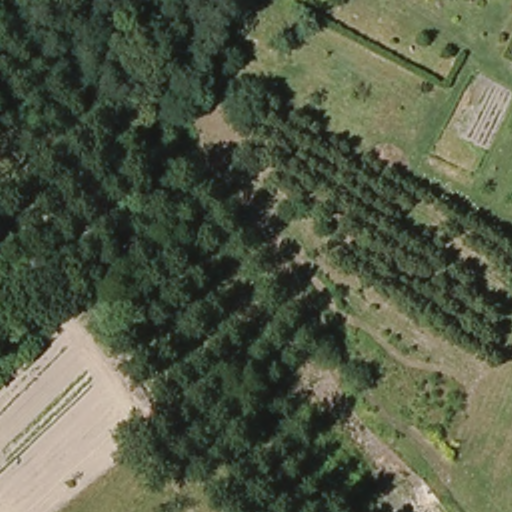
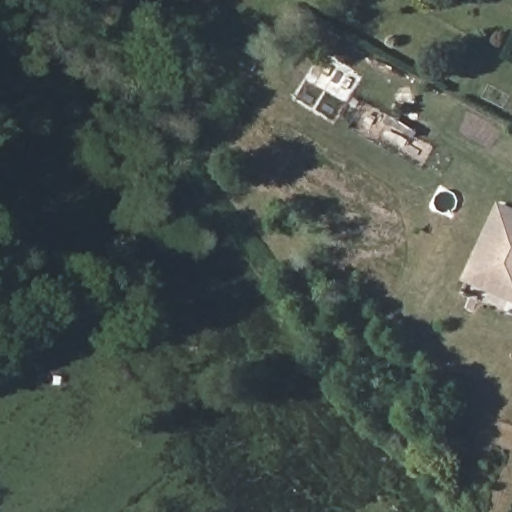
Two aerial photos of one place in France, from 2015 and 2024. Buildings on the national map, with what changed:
new [(465,280),(500,201),(512,206),(512,302),(465,280)]

